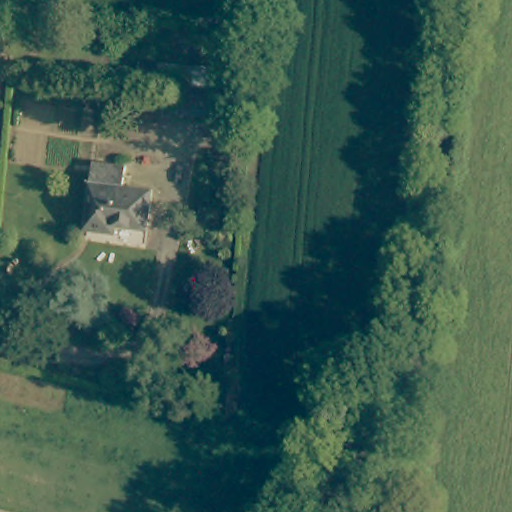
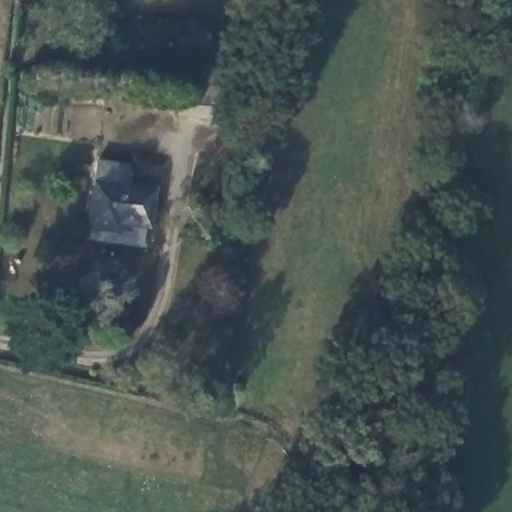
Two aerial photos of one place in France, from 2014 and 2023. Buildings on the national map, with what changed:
unchanged [(235,15),(234,37),(216,35),(217,13),(235,15)]
unchanged [(209,114),(206,123),(156,119),(160,88),(161,67),(204,71),(201,91),(200,112),(209,114)]
unchanged [(124,190),(152,193),(147,230),(107,225),(106,234),(86,231),(87,220),(95,164),(125,167),(124,190)]

